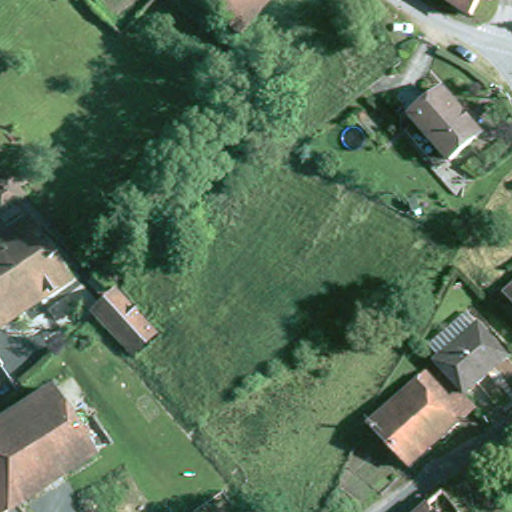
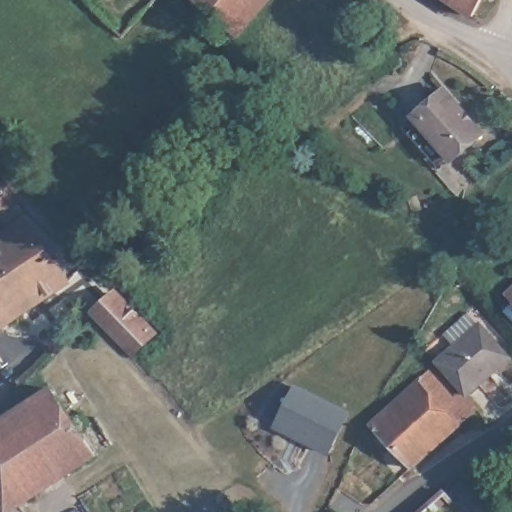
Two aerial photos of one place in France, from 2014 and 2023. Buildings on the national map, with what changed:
unchanged [(271,0),(242,37),(192,0),(271,0)]
unchanged [(440,0),(485,0),(473,21),(440,0)]
unchanged [(420,125),(413,117),(443,90),(482,133),(453,161),(446,154),(435,164),(409,135),(420,125)]
unchanged [(20,188),(0,201),(0,171),(2,170),(20,188)]
unchanged [(0,328),(0,237),(22,222),(62,282),(0,328)]
unchanged [(506,290),(512,284),(512,298),(506,290)]
unchanged [(151,334),(126,355),(93,318),(115,298),(151,334)]
unchanged [(427,345),(444,330),(467,310),(474,304),(486,318),(476,324),(504,358),(461,394),(432,360),(437,356),(427,345)]
unchanged [(429,365),(467,410),(403,465),(366,425),(429,365)]
new [(348,413),(329,451),(302,440),(304,435),(293,430),(292,433),(283,429),(281,421),(296,388),(348,413)]
unchanged [(49,389),(68,417),(76,413),(83,424),(94,417),(111,444),(106,447),(61,474),(0,512),(0,419),(49,389)]
demolished [(450,512),(418,512),(440,494),(453,510),(450,512)]

